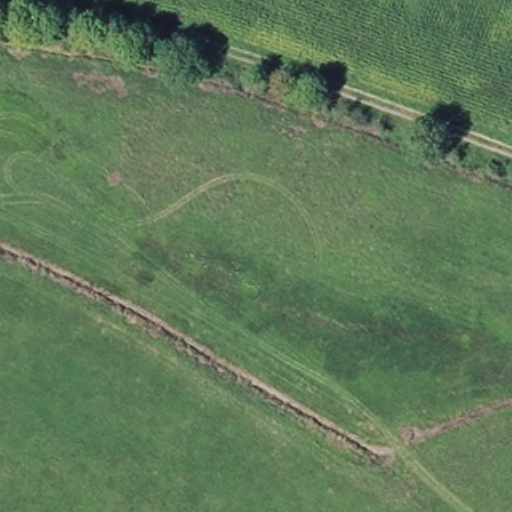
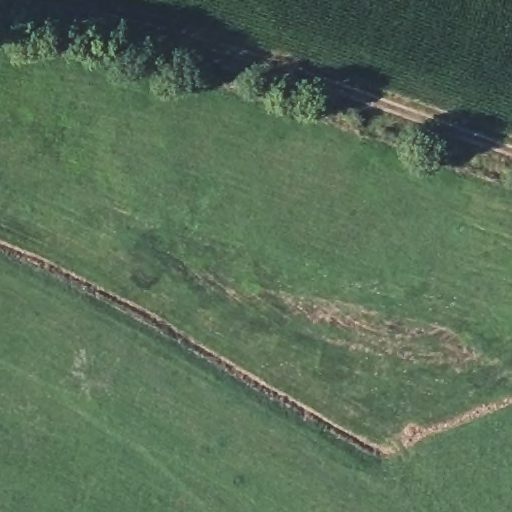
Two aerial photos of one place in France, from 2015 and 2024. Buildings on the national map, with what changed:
[]

